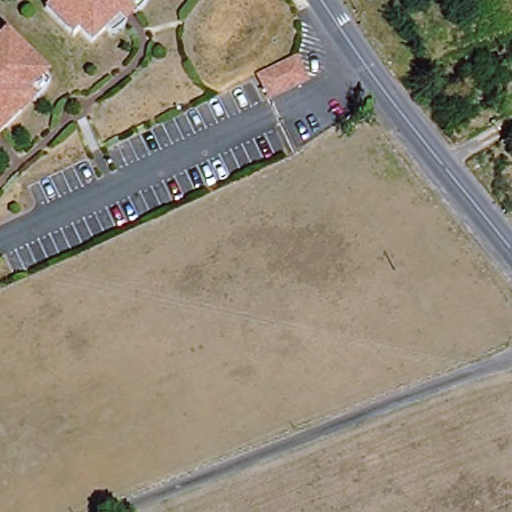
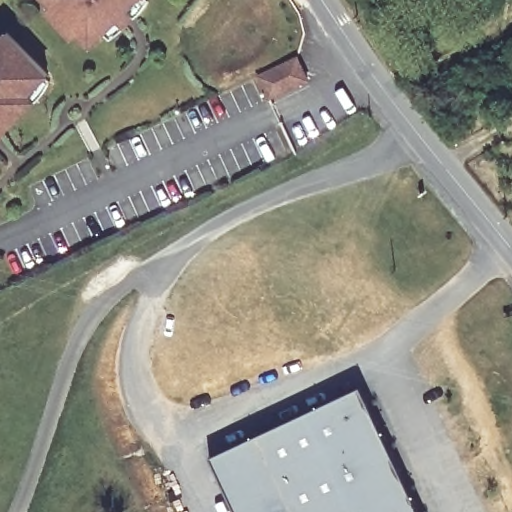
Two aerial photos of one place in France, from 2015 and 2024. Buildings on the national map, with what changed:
unchanged [(127,23),(121,17),(93,43),(82,31),(76,36),(48,8),(53,3),(51,0),(138,0),(130,7),(137,14),(127,23)]
unchanged [(3,31),(45,73),(25,93),(32,99),(19,112),(0,131),(0,35),(3,31)]
unchanged [(272,98),(261,76),(300,57),(310,79),(272,98)]
new [(234,512),(209,458),(358,388),(416,512),(234,512)]

